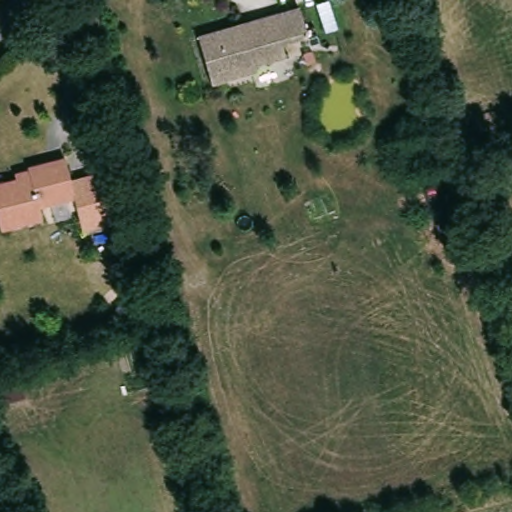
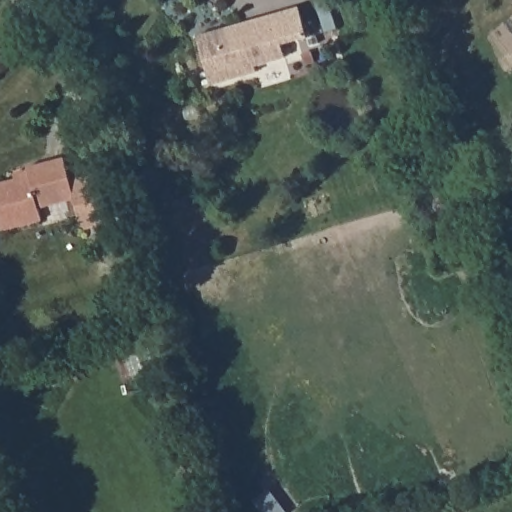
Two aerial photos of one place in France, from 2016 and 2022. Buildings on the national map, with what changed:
unchanged [(309,35),(285,40),(289,57),(259,62),(261,71),(213,84),(201,35),(300,6),(309,35)]
unchanged [(25,169),(63,159),(73,200),(37,210),(40,222),(0,233),(0,184),(27,177),(25,169)]

